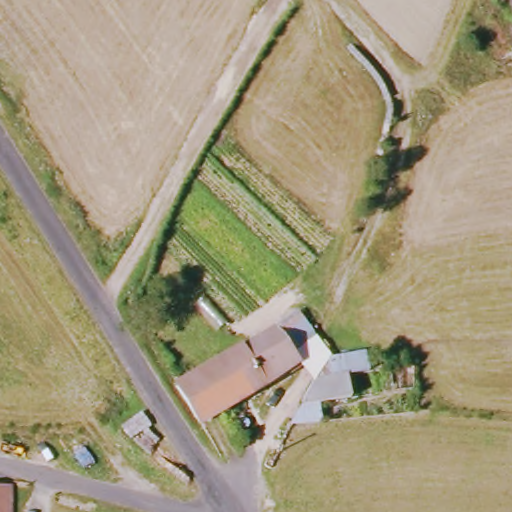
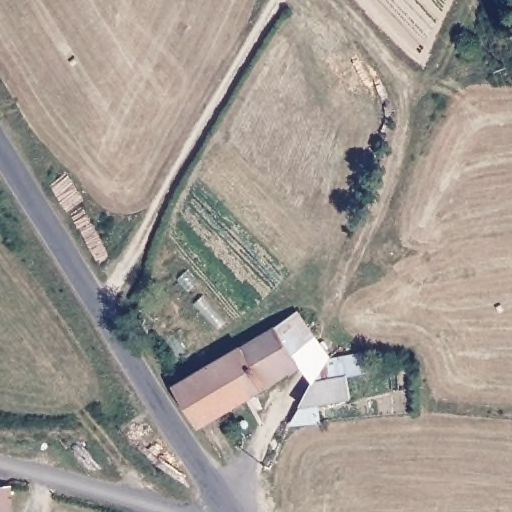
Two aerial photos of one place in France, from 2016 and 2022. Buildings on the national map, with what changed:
unchanged [(293,316),(308,341),(294,367),(269,330),(293,316)]
unchanged [(269,330),(294,367),(196,427),(196,426),(173,388),(269,330)]
unchanged [(294,422),(294,414),(296,410),(307,383),(319,356),(338,355),(344,397),(321,400),(323,421),(319,422),(309,422),(294,422)]
unchanged [(8,512),(0,512),(0,511),(8,511),(8,512)]

